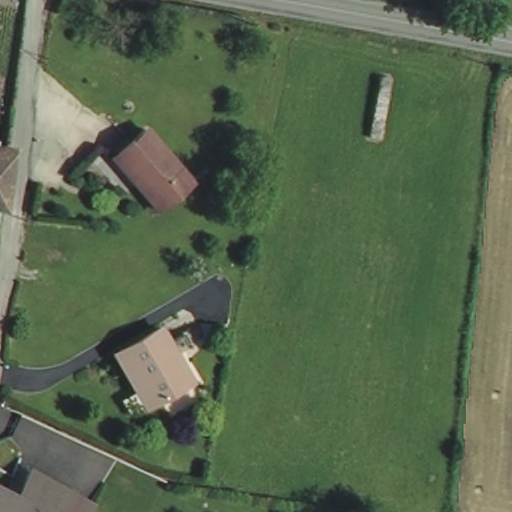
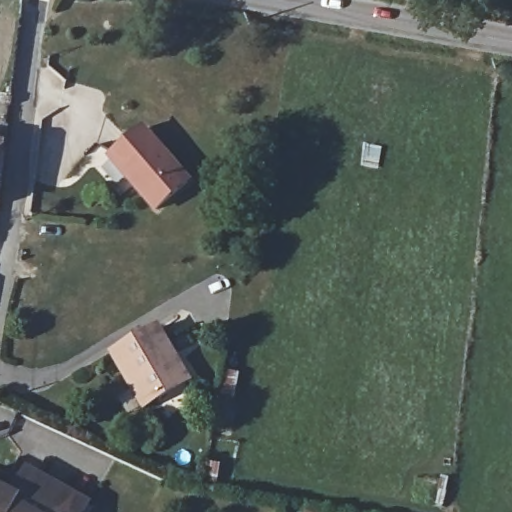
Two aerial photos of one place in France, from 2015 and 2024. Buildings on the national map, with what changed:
unchanged [(141,127),(186,178),(154,205),(129,176),(132,173),(114,152),(141,127)]
unchanged [(4,150),(0,182),(0,149),(4,150)]
unchanged [(181,355),(175,360),(187,382),(150,404),(118,353),(163,325),(181,355)]
unchanged [(12,502),(23,472),(88,507),(85,512),(0,512),(0,497),(12,502)]

